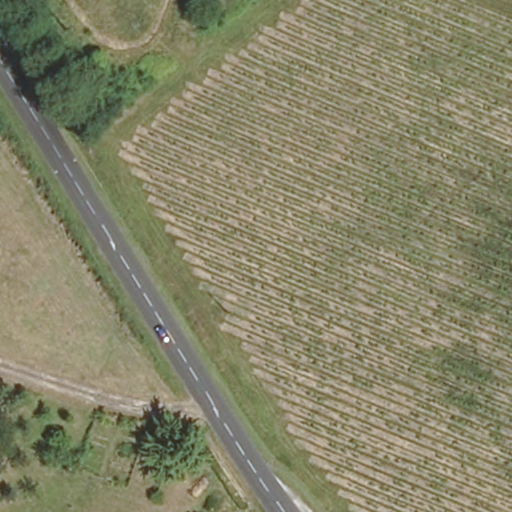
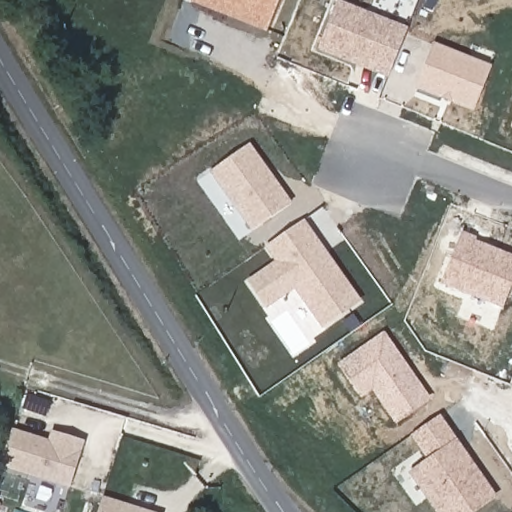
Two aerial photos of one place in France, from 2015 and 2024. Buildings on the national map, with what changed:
new [(190,0),(280,0),(267,33),(190,1),(190,0)]
new [(387,78),(317,50),(337,0),(339,0),(408,28),(387,78)]
new [(492,66),(474,112),(416,89),(434,43),(492,66)]
new [(512,121),(512,128),(510,128),(512,121)]
new [(292,202),(251,231),(210,172),(250,143),(292,202)]
new [(265,247),(305,220),(363,303),(322,331),(294,290),(266,310),(246,282),(275,262),(265,247)]
new [(512,287),(503,309),(441,283),(461,233),(512,254),(512,287)]
new [(396,425),(372,391),(361,398),(337,364),(385,332),(432,400),(396,425)]
new [(411,436),(441,415),(498,497),(476,512),(435,512),(408,473),(427,459),(411,436)]
new [(0,466),(0,464),(12,428),(48,440),(51,430),(86,441),(70,489),(0,466)]
new [(155,512),(97,512),(103,496),(155,512)]

